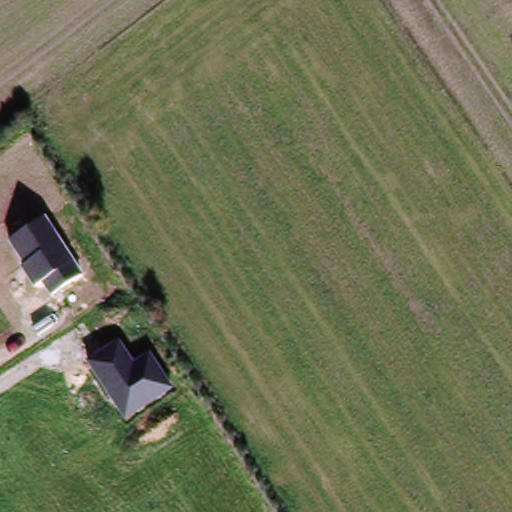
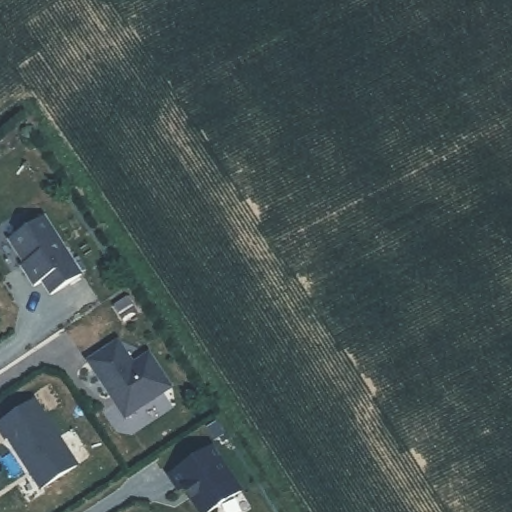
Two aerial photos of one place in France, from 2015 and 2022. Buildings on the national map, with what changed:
unchanged [(20,266),(24,262),(10,240),(46,216),(81,274),(51,295),(41,280),(32,285),(20,266)]
unchanged [(88,361),(118,342),(133,362),(150,351),(172,388),(125,420),(88,361)]
new [(35,399),(76,463),(40,487),(7,437),(5,438),(0,430),(0,421),(35,399)]
new [(240,491),(209,512),(200,512),(183,486),(179,488),(170,475),(211,447),(240,491)]

